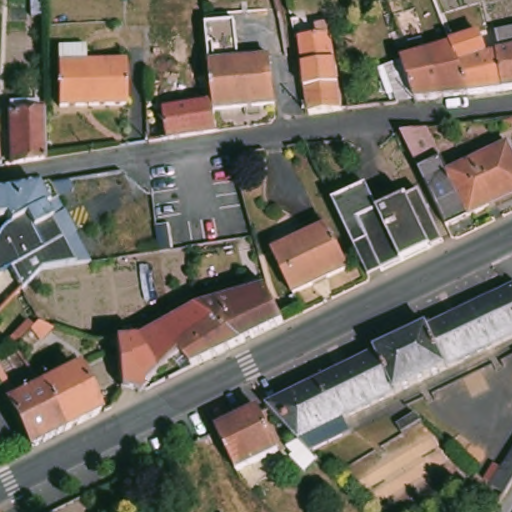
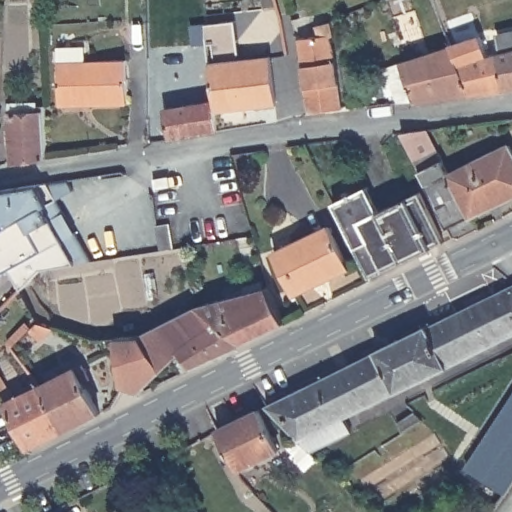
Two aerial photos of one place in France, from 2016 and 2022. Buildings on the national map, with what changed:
unchanged [(382,7),(380,0),(401,0),(382,7)]
unchanged [(502,45),(500,27),(512,25),(512,84),(505,85),(500,45),(502,45)]
unchanged [(309,91),(307,74),(306,67),(302,41),(310,40),(310,32),(333,26),(336,39),(332,40),(337,63),(340,87),(343,112),(335,113),(320,115),(315,116),(311,117),(310,99),(309,91)]
unchanged [(480,28),(488,46),(500,45),(505,85),(487,87),(471,89),(455,39),(480,28)]
unchanged [(455,39),(471,89),(446,93),(431,47),(447,42),(446,38),(453,34),(455,39)]
unchanged [(102,102),(63,103),(62,46),(90,46),(91,59),(100,59),(102,102)]
unchanged [(405,56),(410,54),(431,47),(446,93),(417,97),(405,56)]
unchanged [(270,57),(275,102),(217,109),(216,99),(215,84),(212,63),(270,57)]
unchanged [(131,59),(131,101),(102,102),(100,59),(131,59)]
unchanged [(217,109),(219,129),(168,135),(165,104),(216,99),(217,109)]
unchanged [(45,155),(26,158),(11,160),(9,110),(36,108),(36,100),(43,100),(45,155)]
unchanged [(457,246),(446,223),(432,194),(425,179),(403,137),(433,133),(450,165),(503,139),(512,157),(512,190),(469,211),(480,234),(457,246)]
unchanged [(0,271),(0,229),(5,224),(0,216),(0,187),(42,180),(59,206),(90,258),(80,260),(38,267),(20,288),(10,271),(7,267),(0,271)]
unchanged [(370,188),(382,212),(422,194),(446,243),(385,272),(371,244),(357,251),(335,204),(370,188)]
unchanged [(333,224),(353,266),(300,292),(280,250),(333,224)]
unchanged [(140,396),(120,391),(115,349),(106,350),(106,341),(115,340),(136,338),(194,307),(196,306),(201,305),(263,286),(282,325),(237,347),(227,352),(192,370),(180,356),(155,381),(160,386),(150,391),(140,396)]
unchanged [(311,469),(298,454),(301,451),(295,444),(308,437),(275,402),(332,375),(385,349),(383,346),(435,322),(437,323),(512,287),(512,336),(443,369),(352,414),(358,428),(318,448),(325,456),(311,469)]
unchanged [(55,332),(36,343),(27,335),(32,330),(35,327),(55,332)]
unchanged [(66,342),(61,341),(63,334),(68,335),(66,342)]
unchanged [(75,427),(69,430),(48,382),(82,366),(104,412),(75,427)]
unchanged [(69,430),(36,447),(15,403),(6,389),(15,384),(22,395),(48,382),(69,430)]
new [(505,492),(465,467),(512,396),(512,481),(505,492)]
unchanged [(268,409),(287,449),(245,469),(225,429),(268,409)]
unchanged [(394,423),(412,414),(420,422),(400,434),(394,423)]
demolished [(506,495),(486,480),(496,465),(504,470),(512,457),(512,487),(506,495)]
unchanged [(32,490),(34,492),(37,501),(24,509),(19,512),(0,512),(0,507),(19,497),(32,490)]

